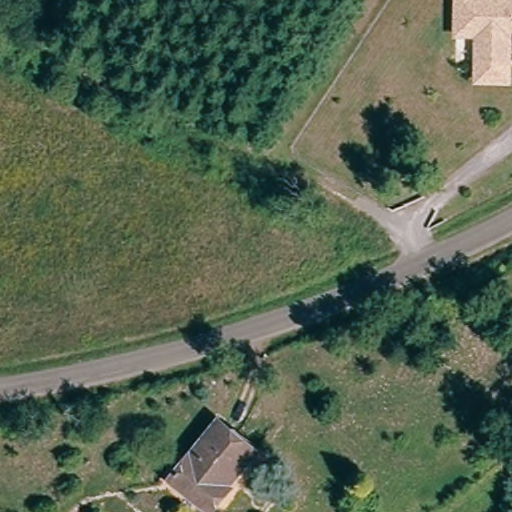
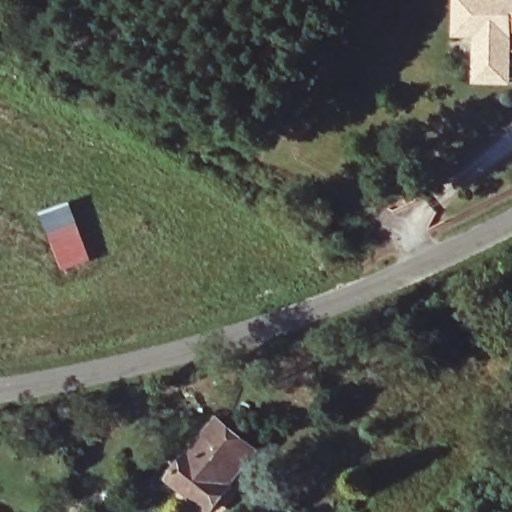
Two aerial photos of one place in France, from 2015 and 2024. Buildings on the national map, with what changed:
unchanged [(486,29),(465,25),(471,0),(512,0),(512,61),(508,81),(476,75),(481,52),(486,29)]
new [(58,255),(65,252),(61,245),(56,246),(42,212),(71,201),(95,260),(65,272),(58,255)]
unchanged [(257,440),(229,476),(235,480),(213,508),(171,476),(221,413),(257,440)]

